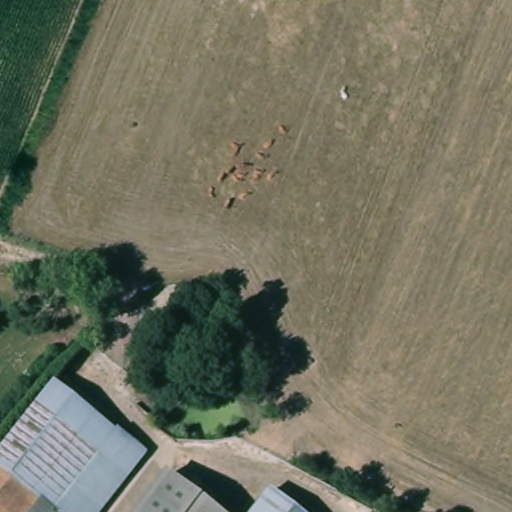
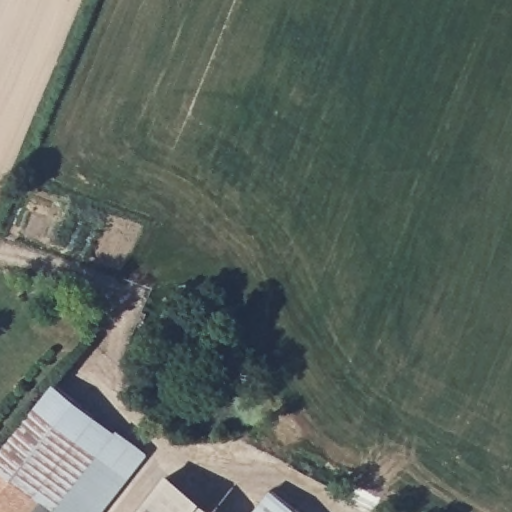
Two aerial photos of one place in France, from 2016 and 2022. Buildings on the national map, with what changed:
unchanged [(59,387),(149,457),(107,512),(65,512),(0,460),(59,387)]
unchanged [(65,512),(0,512),(0,460),(65,512)]
unchanged [(166,475),(215,512),(138,512),(166,475)]
unchanged [(272,488),(301,512),(254,512),(272,488)]

